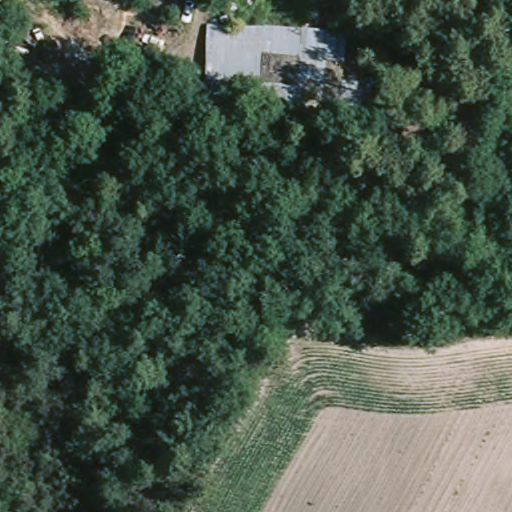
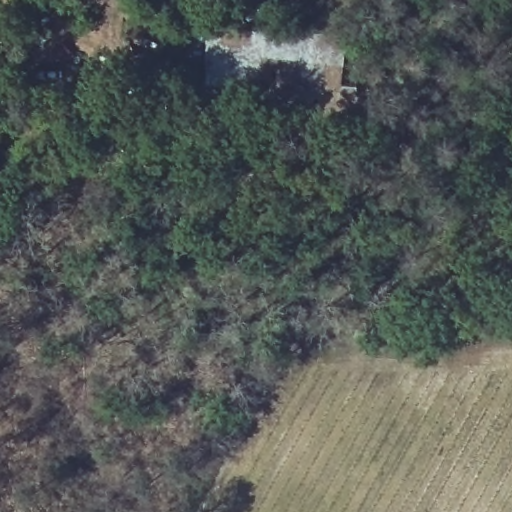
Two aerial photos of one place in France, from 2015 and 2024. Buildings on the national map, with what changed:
unchanged [(202,132),(208,28),(346,35),(341,139),(202,132)]
unchanged [(104,94),(99,115),(65,106),(71,85),(104,94)]

